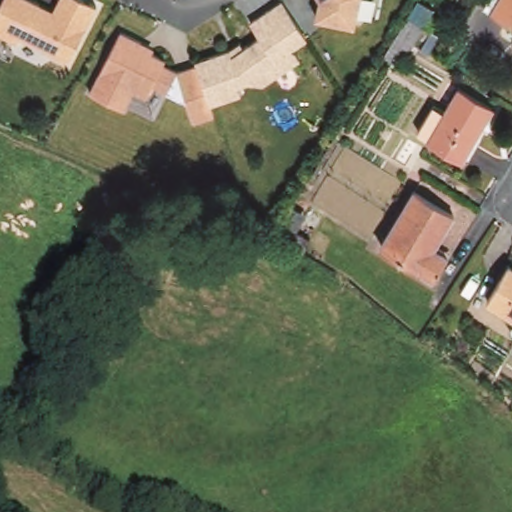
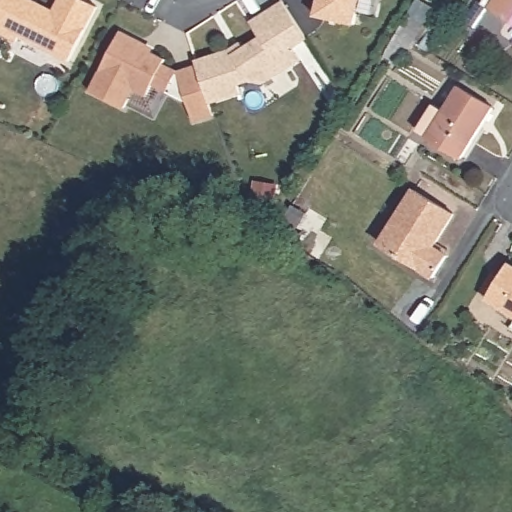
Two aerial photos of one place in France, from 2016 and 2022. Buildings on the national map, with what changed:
unchanged [(2,0),(28,0),(52,13),(59,0),(79,0),(95,9),(67,64),(18,38),(16,44),(0,36),(0,4),(2,0)]
unchanged [(355,29),(315,23),(319,0),(361,0),(355,29)]
unchanged [(512,21),(484,5),(487,0),(512,0),(512,21)]
unchanged [(238,45),(241,50),(258,39),(248,24),(280,3),(305,41),(290,51),(298,62),(261,86),(248,83),(236,87),(239,96),(208,106),(194,63),(228,51),(238,45)]
unchanged [(389,48),(397,32),(413,7),(428,17),(413,42),(405,57),(389,48)]
unchanged [(120,32),(153,47),(151,52),(164,58),(162,63),(175,70),(194,63),(208,106),(212,119),(195,124),(189,107),(153,91),(149,100),(134,93),(125,111),(90,93),(120,32)]
unchanged [(433,109),(444,116),(460,89),(492,109),(463,160),(421,135),(420,132),(433,109)]
unchanged [(413,194),(451,217),(431,249),(445,257),(433,278),(383,245),(413,194)]
unchanged [(281,222),(301,233),(294,245),(273,233),(281,222)]
unchanged [(512,266),(512,317),(485,301),(508,264),(512,266)]
unchanged [(466,381),(478,394),(467,402),(457,388),(466,381)]

